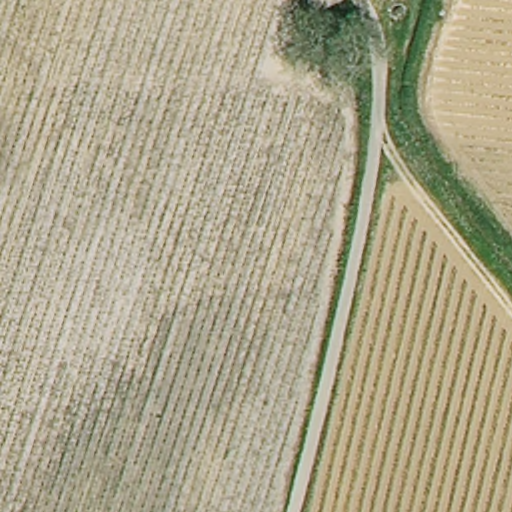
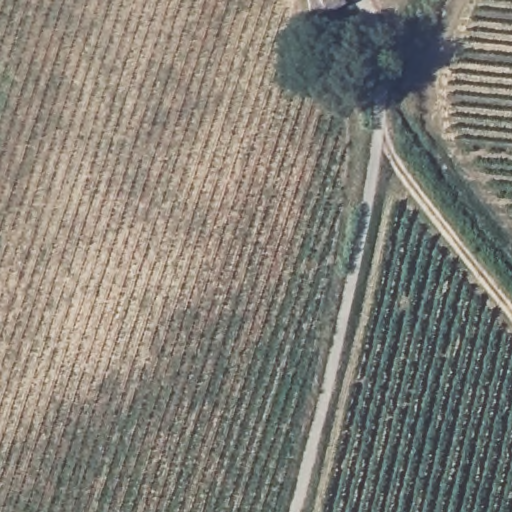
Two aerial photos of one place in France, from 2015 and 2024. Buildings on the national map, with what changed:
unchanged [(325,12),(319,0),(344,0),(325,12)]

